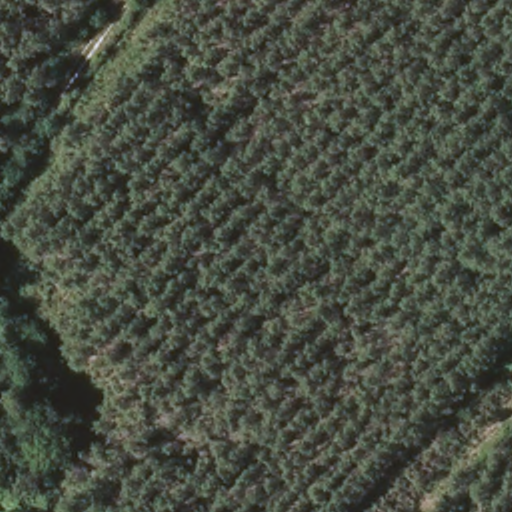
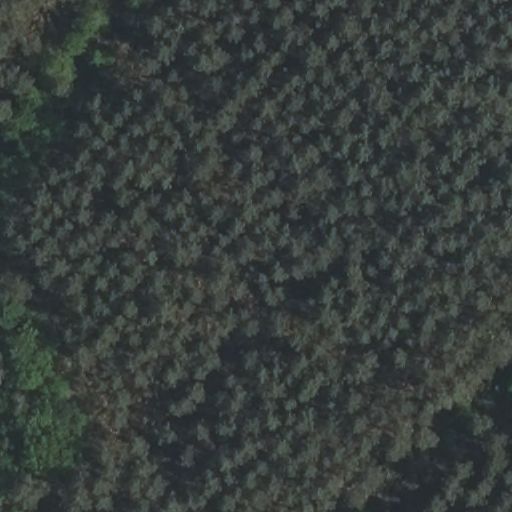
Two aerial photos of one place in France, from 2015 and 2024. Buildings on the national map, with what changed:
[]

